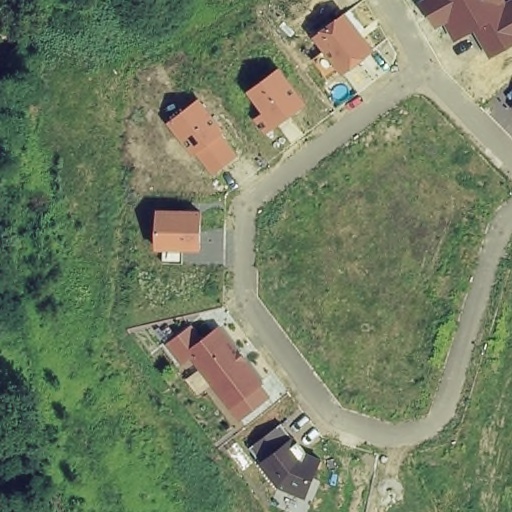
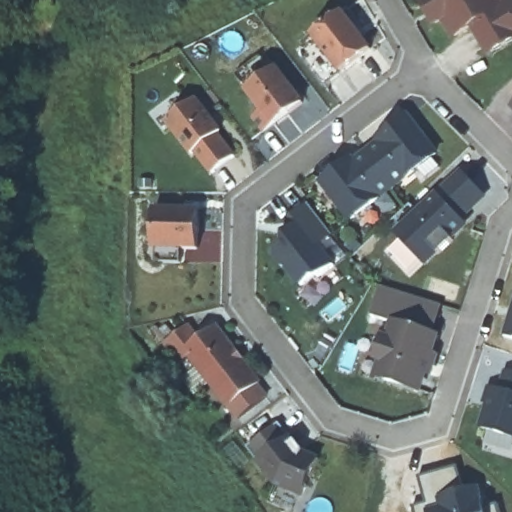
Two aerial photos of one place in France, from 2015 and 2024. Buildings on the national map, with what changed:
unchanged [(512,36),(491,48),(475,20),(456,31),(446,13),(438,19),(427,0),(504,0),(505,2),(510,0),(512,0),(512,36)]
unchanged [(331,80),(307,49),(324,35),(321,31),(350,9),(378,45),(349,67),(331,80)]
unchanged [(279,69),(305,104),(266,132),(256,118),(265,111),(249,90),(279,69)]
unchanged [(223,131),(219,135),(236,156),(213,173),(197,151),(193,154),(169,121),(198,100),(223,131)]
new [(353,160),(355,164),(383,143),(380,140),(409,117),(438,155),(353,220),(324,182),(353,160)]
new [(440,196),(464,174),(485,196),(461,219),(455,225),(461,230),(453,238),(455,240),(440,255),(438,252),(426,263),(399,235),(440,196)]
new [(334,235),(320,246),(335,266),(319,278),(318,275),(303,286),(289,267),(284,267),(275,255),(275,250),(296,235),(287,222),(310,204),(334,235)]
unchanged [(163,262),(163,247),(156,247),(158,210),(201,211),(200,249),(183,248),(182,262),(163,262)]
new [(379,358),(385,340),(390,341),(396,323),(373,316),(382,287),(420,300),(441,306),(432,335),(438,336),(433,353),(438,355),(431,375),(426,373),(421,390),(379,377),(384,360),(379,358)]
new [(512,339),(505,336),(512,314),(512,339)]
unchanged [(182,363),(167,343),(190,326),(200,340),(218,326),(261,383),(259,385),(268,397),(240,419),(230,407),(191,355),(182,363)]
new [(512,438),(483,428),(490,405),(485,404),(490,387),(503,390),(509,371),(512,373),(512,438)]
unchanged [(280,423),(303,452),(320,460),(313,478),(311,477),(303,495),(278,485),(249,447),(280,423)]
new [(419,476),(458,464),(466,488),(480,485),(486,505),(499,502),(501,512),(414,512),(412,506),(425,502),(419,476)]

